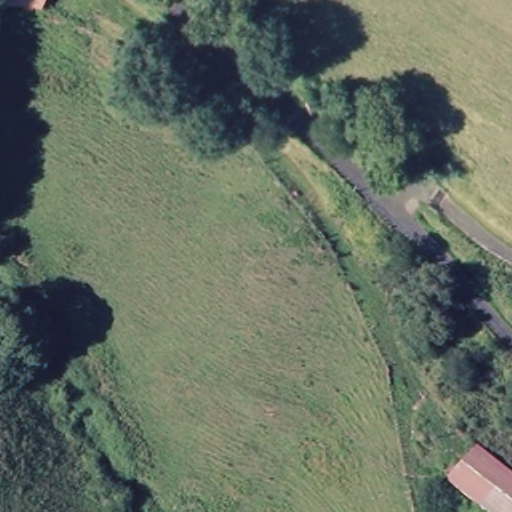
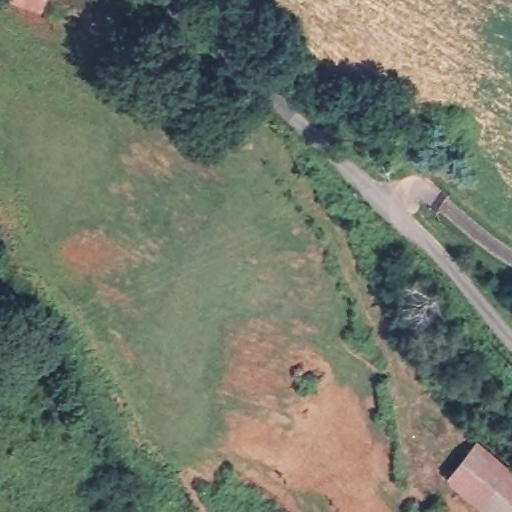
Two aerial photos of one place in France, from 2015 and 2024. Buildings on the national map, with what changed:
unchanged [(39,13),(6,0),(45,0),(39,13)]
unchanged [(512,478),(512,512),(483,512),(453,485),(481,451),(512,478)]

